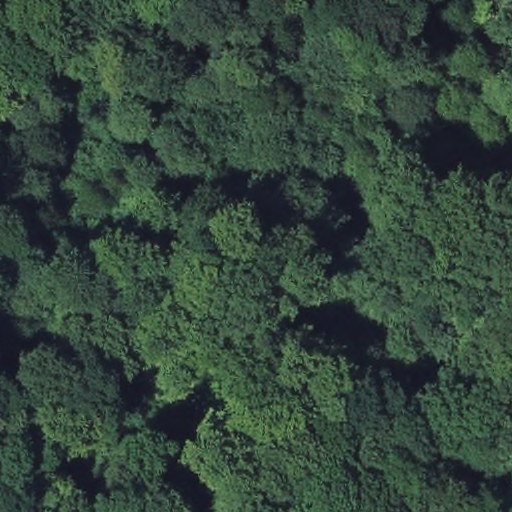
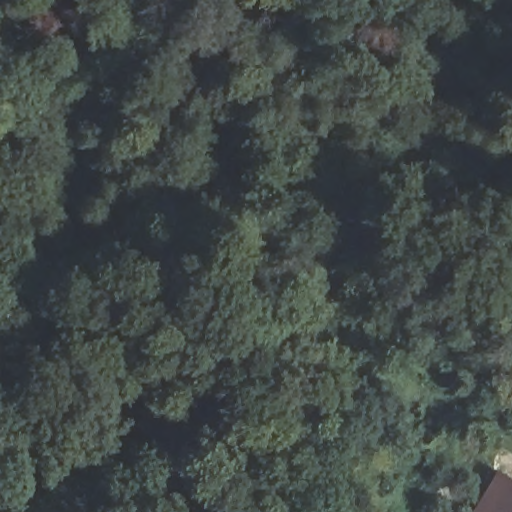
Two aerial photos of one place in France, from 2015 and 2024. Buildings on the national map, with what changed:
new [(512,479),(512,512),(481,512),(504,474),(512,479)]

